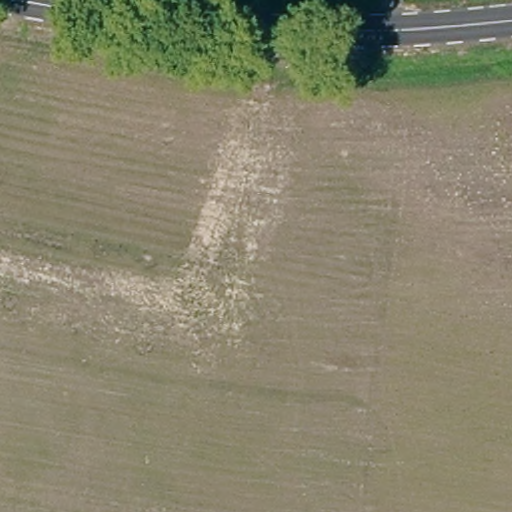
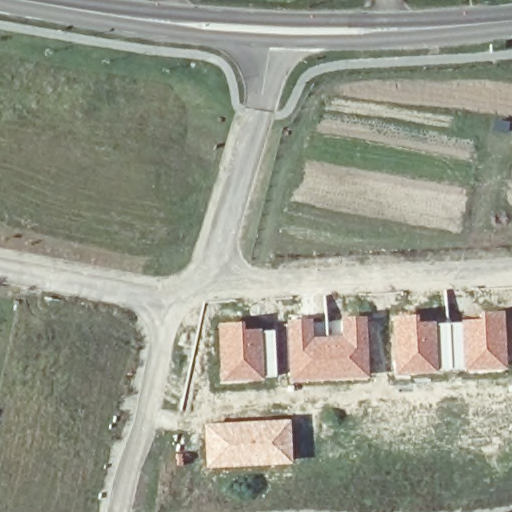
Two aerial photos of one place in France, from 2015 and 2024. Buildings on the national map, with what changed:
new [(394,374),(390,318),(416,315),(417,322),(433,321),(433,324),(460,323),(460,320),(478,319),(478,312),(502,311),(505,370),(462,372),(462,369),(437,369),(437,373),(394,374)]
new [(288,381),(286,320),(311,319),(312,338),(341,337),(340,318),(365,317),(367,378),(288,381)]
new [(220,382),(216,324),(242,323),(242,330),(258,330),(258,331),(272,331),(275,378),(261,379),(261,380),(220,382)]
new [(205,468),(202,425),(288,420),(290,463),(205,468)]

